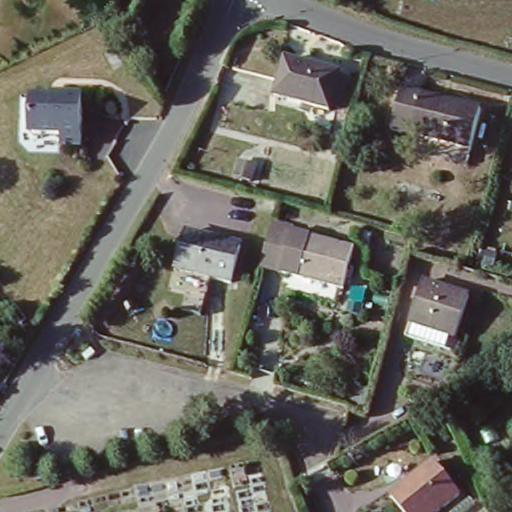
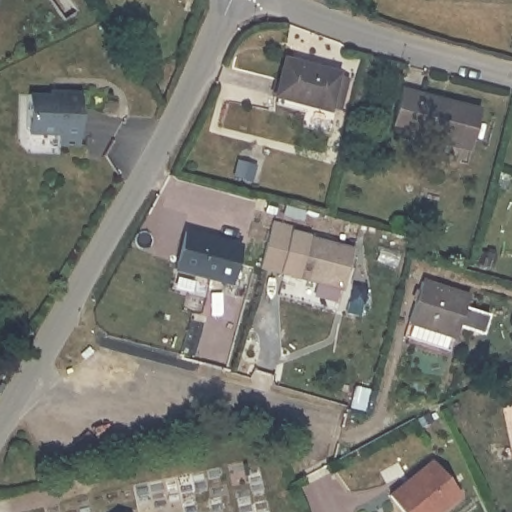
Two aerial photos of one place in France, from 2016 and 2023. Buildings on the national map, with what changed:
unchanged [(329,104),(326,110),(273,92),(286,50),(340,67),(337,75),(347,79),(338,107),(329,104)]
unchanged [(393,126),(406,84),(486,108),(473,150),(393,126)]
unchanged [(84,95),(82,147),(60,147),(59,137),(30,137),(31,92),(84,95)]
unchanged [(262,263),(275,217),(294,223),(293,227),(315,234),(363,251),(348,292),(262,263)]
unchanged [(231,282),(180,265),(194,227),(244,244),(231,282)]
unchanged [(423,281),(468,298),(455,336),(410,320),(423,281)]
unchanged [(432,458),(456,489),(427,512),(405,512),(389,493),(432,458)]

